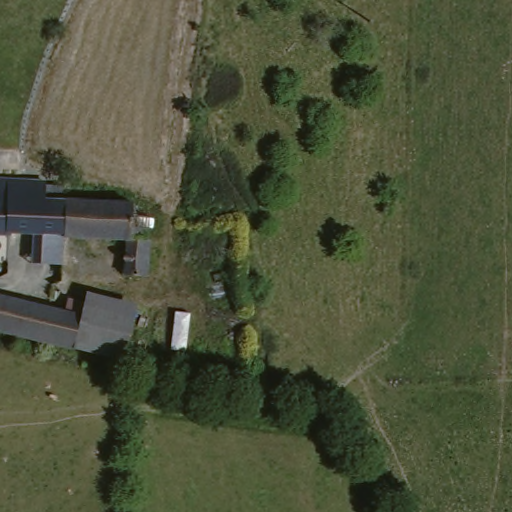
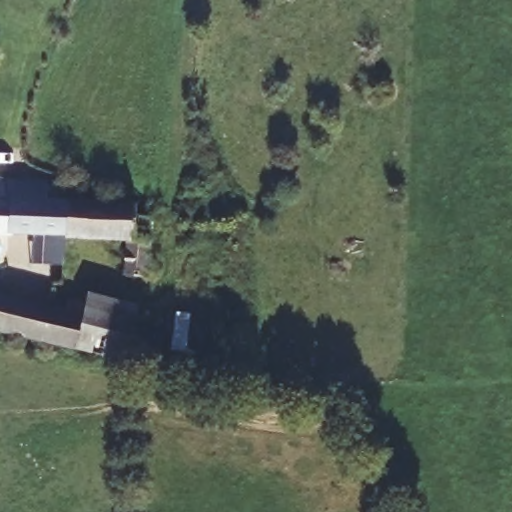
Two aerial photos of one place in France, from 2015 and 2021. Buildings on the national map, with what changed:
unchanged [(2,231),(0,230),(0,176),(10,177),(9,227),(2,231)]
unchanged [(43,179),(45,196),(65,197),(64,228),(9,227),(10,177),(43,179)]
unchanged [(124,271),(126,237),(64,233),(64,228),(65,197),(127,200),(151,202),(151,237),(149,271),(124,271)]
unchanged [(65,297),(87,302),(76,347),(0,331),(0,296),(62,309),(65,297)]
unchanged [(89,298),(137,311),(126,360),(76,347),(87,302),(89,298)]

